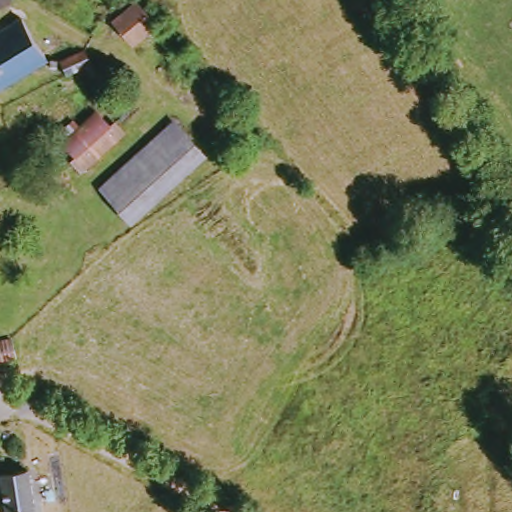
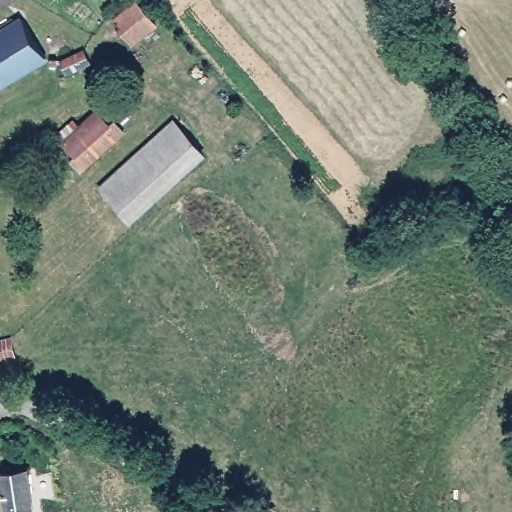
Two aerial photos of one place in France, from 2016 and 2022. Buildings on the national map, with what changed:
unchanged [(114,20),(137,0),(145,0),(164,27),(137,48),(114,20)]
unchanged [(0,81),(0,29),(20,16),(44,54),(0,81)]
unchanged [(94,66),(87,70),(82,61),(64,68),(57,54),(84,43),(94,66)]
unchanged [(121,129),(124,131),(102,152),(87,165),(72,149),(109,115),(110,116),(121,129)]
unchanged [(137,222),(107,189),(182,121),(210,154),(137,222)]
unchanged [(11,337),(14,356),(0,359),(0,339),(11,337)]
unchanged [(9,511),(0,470),(25,468),(32,508),(25,510),(25,512),(9,512),(9,511)]

